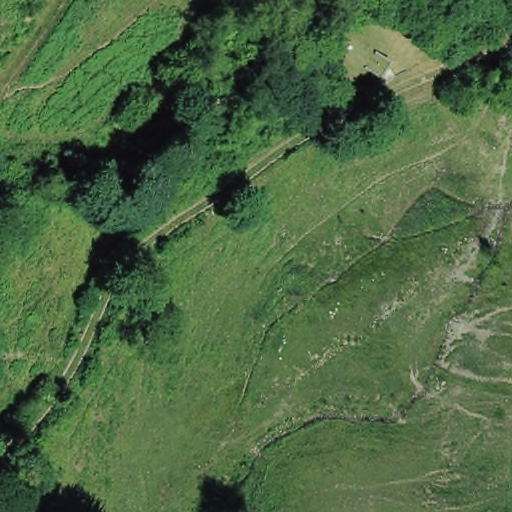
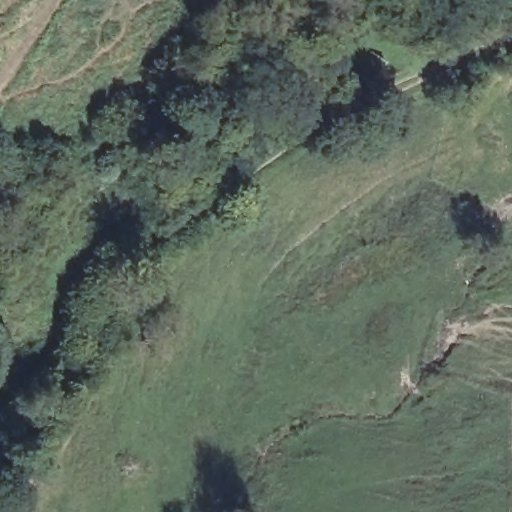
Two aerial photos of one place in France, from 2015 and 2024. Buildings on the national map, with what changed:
unchanged [(386,65),(375,81),(359,70),(370,53),(386,65)]

